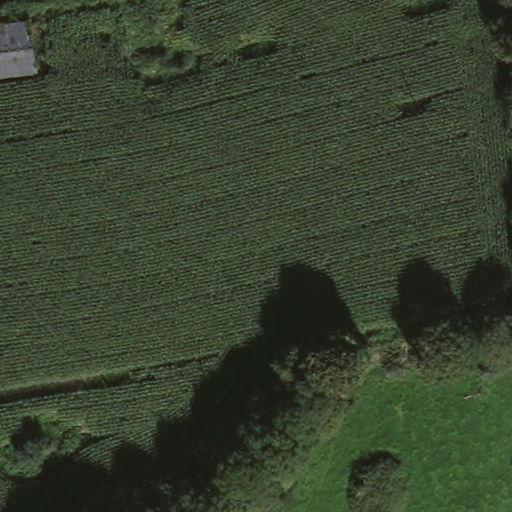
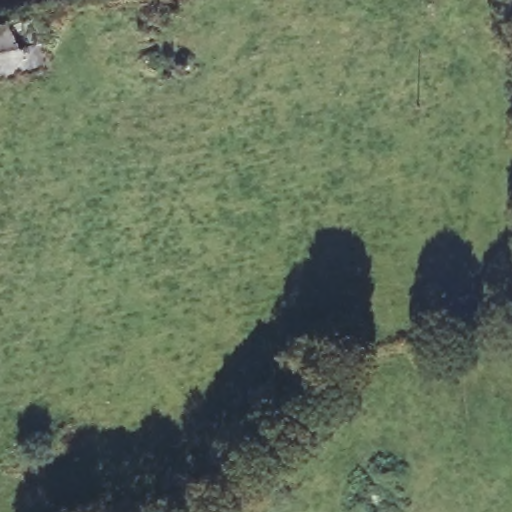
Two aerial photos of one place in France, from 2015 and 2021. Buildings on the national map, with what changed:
unchanged [(0,77),(0,27),(37,23),(43,71),(0,77)]

